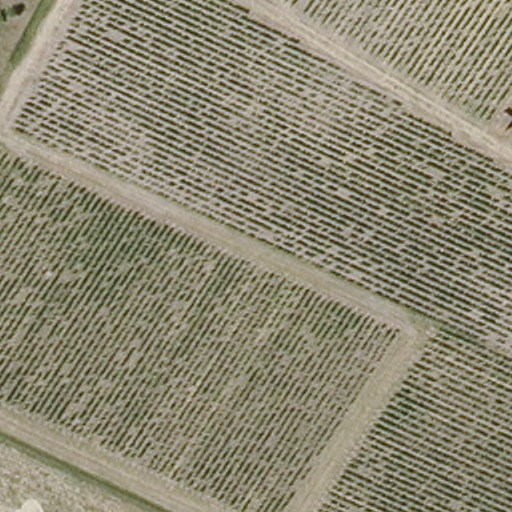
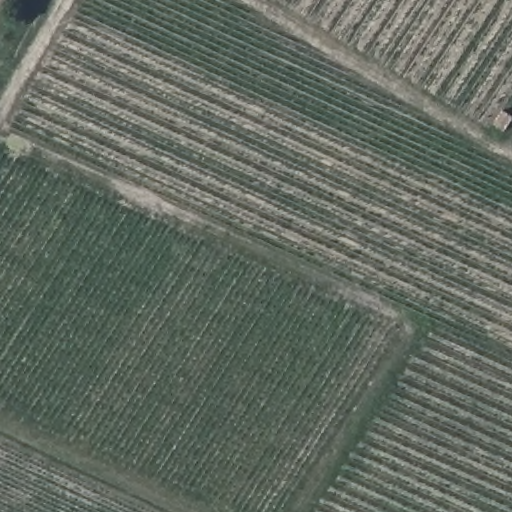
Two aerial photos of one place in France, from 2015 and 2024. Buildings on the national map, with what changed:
unchanged [(503,105),(512,113),(512,124),(504,134),(489,122),(503,105)]

